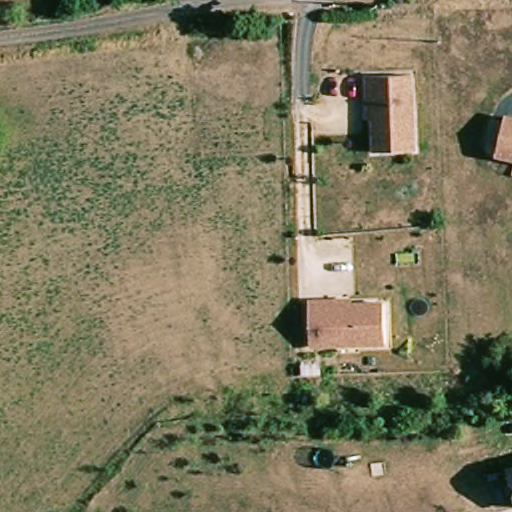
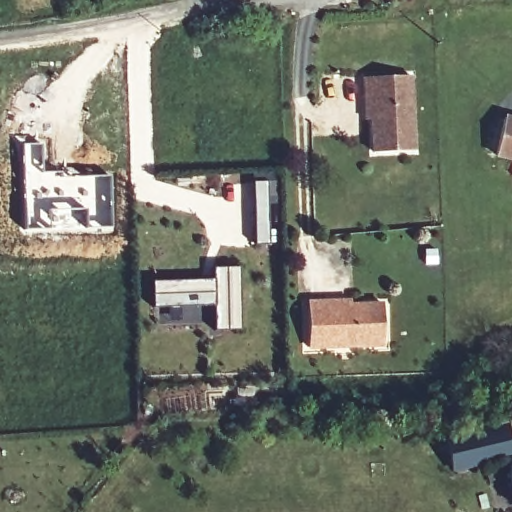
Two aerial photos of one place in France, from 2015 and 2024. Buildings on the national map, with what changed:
unchanged [(372,97),(367,98),(366,80),(412,79),(414,153),(374,155),(372,97)]
unchanged [(511,121),(512,121),(512,157),(504,155),(511,121)]
new [(43,141),(44,169),(67,170),(67,173),(111,174),(113,229),(24,230),(21,141),(43,141)]
new [(212,266),(239,266),(241,328),(214,329),(213,305),(212,278),(212,266)]
new [(212,278),(213,305),(153,308),(152,280),(212,278)]
unchanged [(337,307),(383,307),(382,349),(311,350),(312,303),(337,302),(337,307)]
unchanged [(509,475),(512,474),(512,490),(509,475)]

